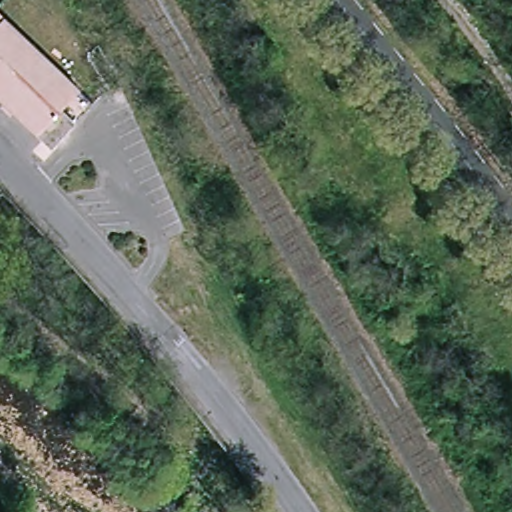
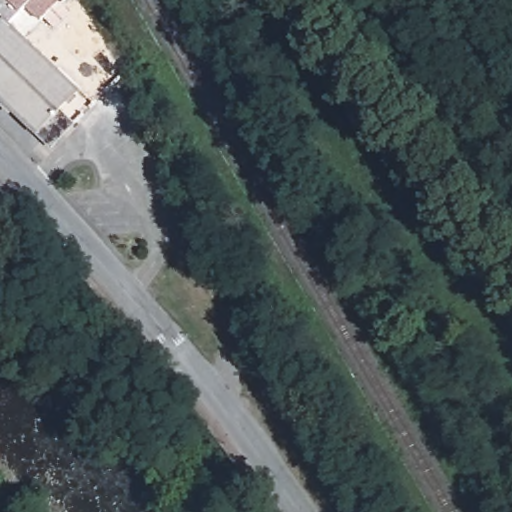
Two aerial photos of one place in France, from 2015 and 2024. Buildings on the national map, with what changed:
new [(0,16),(0,11),(3,8),(0,5),(0,0),(58,0),(60,2),(41,22),(26,8),(21,14),(9,24),(6,22),(0,16)]
unchanged [(60,109),(75,123),(50,148),(0,100),(0,28),(6,22),(78,91),(60,109)]

